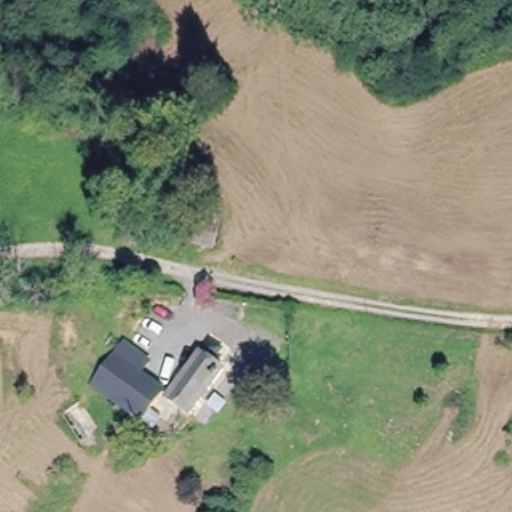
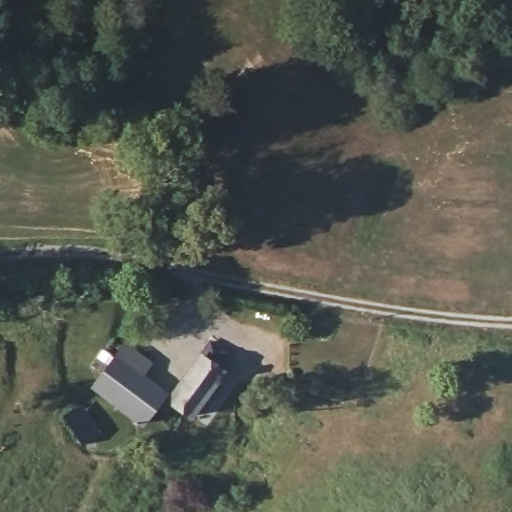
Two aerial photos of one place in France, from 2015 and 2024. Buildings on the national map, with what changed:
unchanged [(210,218),(218,220),(208,251),(196,247),(189,245),(198,215),(210,218)]
unchanged [(209,340),(221,348),(212,362),(223,369),(193,416),(169,400),(209,340)]
unchanged [(145,425),(95,392),(115,361),(123,349),(148,365),(140,378),(165,394),(145,425)]

